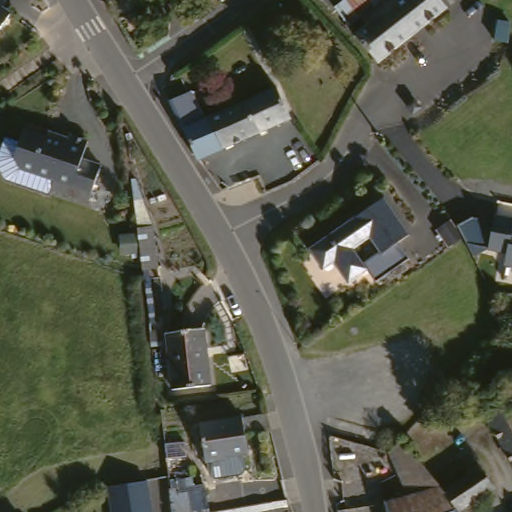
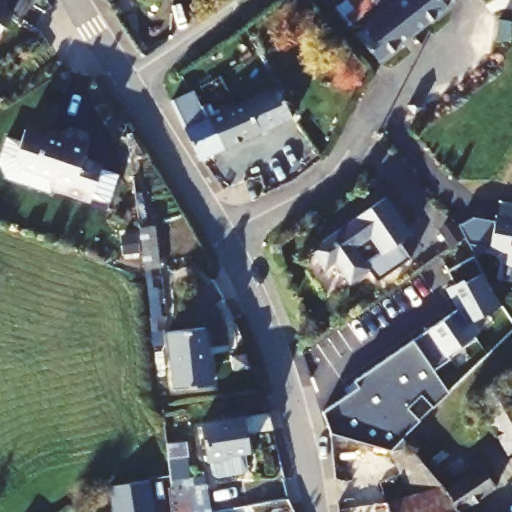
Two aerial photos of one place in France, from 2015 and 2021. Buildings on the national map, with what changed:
unchanged [(1,9),(14,17),(0,36),(0,0),(1,0),(6,3),(1,9)]
unchanged [(339,13),(356,0),(391,0),(364,21),(354,29),(352,31),(339,13)]
unchanged [(358,41),(371,31),(367,26),(364,21),(391,0),(437,0),(450,18),(379,70),(358,41)]
unchanged [(201,161),(175,99),(182,97),(196,91),(203,109),(206,117),(215,115),(229,151),(201,161)]
unchanged [(266,136),(252,101),(281,91),(297,124),(266,136)]
unchanged [(229,151),(215,115),(252,101),(266,136),(229,151)]
unchanged [(408,104),(415,111),(407,118),(401,111),(408,104)]
unchanged [(51,143),(52,141),(62,144),(64,141),(74,144),(75,140),(93,146),(87,164),(106,170),(94,207),(56,195),(60,186),(25,174),(19,163),(28,136),(51,143)]
unchanged [(324,268),(310,250),(382,196),(409,232),(398,240),(410,256),(402,262),(377,280),(375,278),(368,268),(350,282),(335,261),(324,268)]
unchanged [(497,216),(512,217),(512,267),(506,267),(508,255),(489,250),(474,255),(467,237),(462,241),(454,247),(440,227),(446,222),(455,216),(463,227),(477,217),(497,216)]
unchanged [(136,274),(131,233),(141,232),(146,273),(136,274)]
new [(475,257),(495,294),(502,305),(473,320),(480,330),(475,334),(478,337),(450,357),(451,358),(435,370),(450,392),(403,440),(391,453),(331,436),(322,413),(359,387),(355,382),(413,339),(459,307),(449,290),(456,286),(447,270),(474,256),(475,257)]
unchanged [(173,337),(209,331),(217,386),(181,390),(173,337)]
unchanged [(478,397),(466,403),(462,396),(478,377),(487,392),(507,381),(512,389),(512,453),(478,397)]
unchanged [(201,428),(243,423),(270,420),(272,437),(246,440),(248,458),(234,459),(235,462),(205,466),(201,428)]
unchanged [(418,500),(403,465),(401,461),(412,449),(446,486),(450,492),(463,512),(388,512),(386,507),(418,500)]
unchanged [(501,488),(464,512),(463,512),(450,492),(488,467),(501,488)]
unchanged [(119,512),(117,496),(116,487),(155,482),(155,483),(158,512),(119,512)]
unchanged [(192,488),(209,487),(213,512),(178,512),(176,491),(192,488)]

